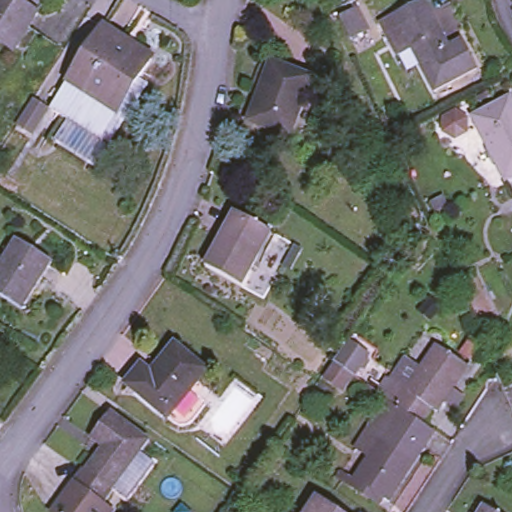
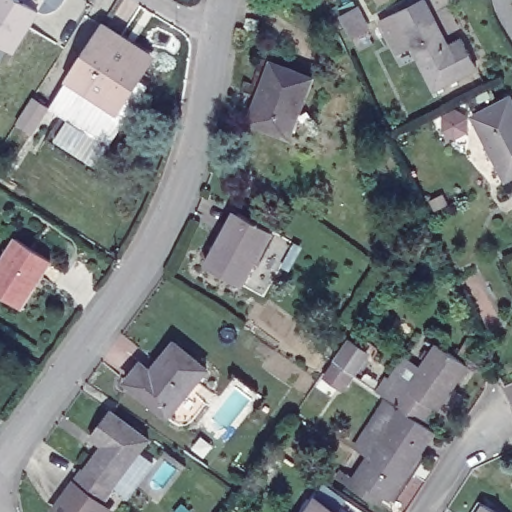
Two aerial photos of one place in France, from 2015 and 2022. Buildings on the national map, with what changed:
unchanged [(15,49),(0,39),(0,0),(24,0),(38,9),(15,49)]
unchanged [(423,0),(446,41),(459,35),(475,65),(434,86),(411,41),(397,48),(389,32),(386,34),(379,19),(413,0),(423,0)]
unchanged [(143,82),(90,165),(50,140),(64,119),(45,107),(97,25),(117,36),(115,39),(146,57),(143,82)]
unchanged [(276,56),(316,74),(290,133),(253,116),(266,90),(262,87),(276,56)]
unchanged [(475,117),(511,99),(512,101),(512,176),(506,180),(475,117)]
unchanged [(236,208),(270,226),(240,281),(203,261),(222,226),(225,227),(236,208)]
unchanged [(51,261),(22,306),(0,291),(0,263),(16,238),(51,261)]
unchanged [(123,377),(139,360),(147,367),(172,338),(204,365),(188,383),(205,397),(191,414),(189,416),(186,417),(182,418),(179,418),(175,418),(172,417),(169,415),(123,377)]
unchanged [(385,394),(395,378),(407,386),(437,340),(470,360),(439,407),(434,404),(424,420),(402,405),(397,401),(396,401),(385,394)]
unchanged [(346,341),(363,353),(351,371),(349,370),(339,385),(322,375),(333,360),(346,341)]
unchanged [(424,420),(430,423),(407,453),(415,459),(388,496),(384,493),(377,503),(333,473),(341,463),(353,471),(402,405),(424,420)]
unchanged [(107,408),(147,436),(97,503),(102,507),(99,512),(54,512),(50,509),(100,442),(88,434),(107,408)]
unchanged [(315,497),(337,512),(305,512),(315,497)]
unchanged [(484,502),(499,512),(477,512),(484,502)]

